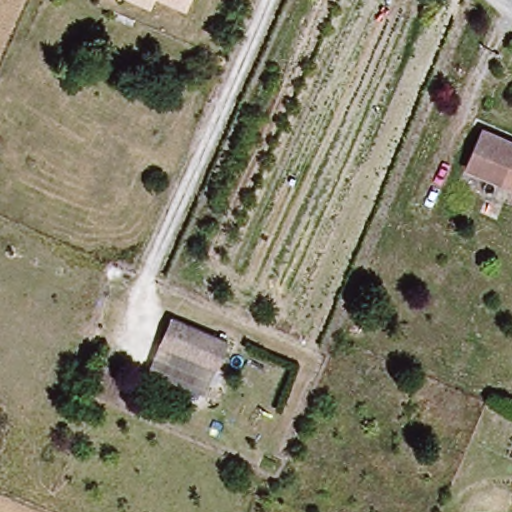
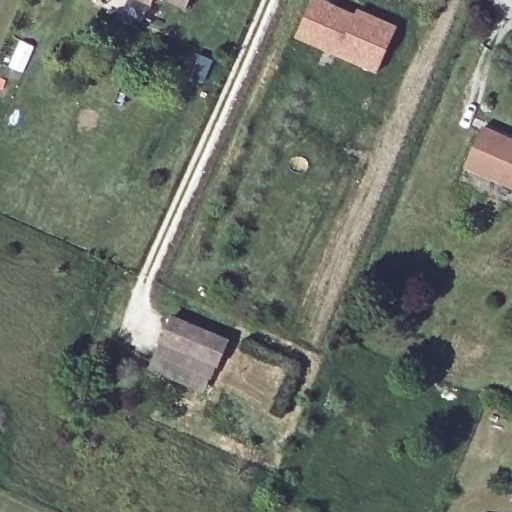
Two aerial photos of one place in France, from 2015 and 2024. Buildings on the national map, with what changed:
unchanged [(147,0),(151,0),(150,1),(147,0)]
unchanged [(184,0),(192,0),(190,3),(184,0)]
new [(361,14),(392,28),(372,72),(310,44),(292,36),(298,23),(308,0),(314,0),(359,20),(361,14)]
unchanged [(485,125),(512,137),(512,182),(469,164),(485,125)]
unchanged [(179,320),(230,344),(219,367),(168,344),(179,320)]
unchanged [(159,363),(168,344),(219,367),(210,387),(159,363)]

